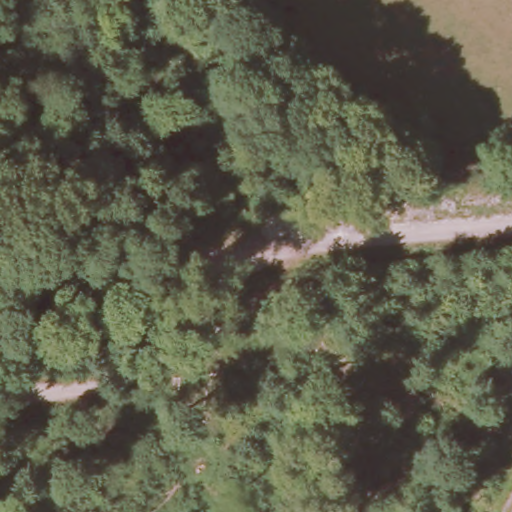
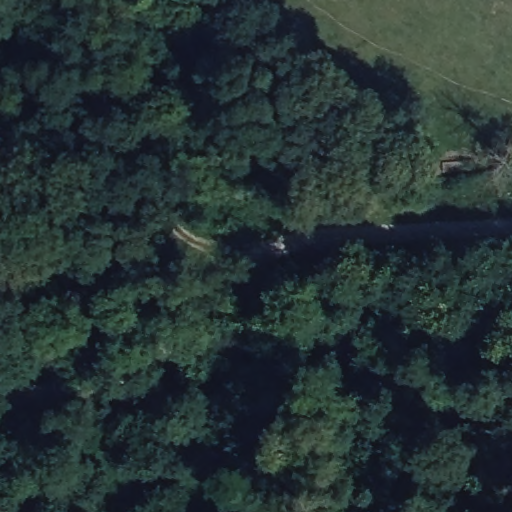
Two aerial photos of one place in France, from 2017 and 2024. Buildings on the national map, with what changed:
unchanged [(0,208),(0,195),(14,195),(15,207),(0,208)]

